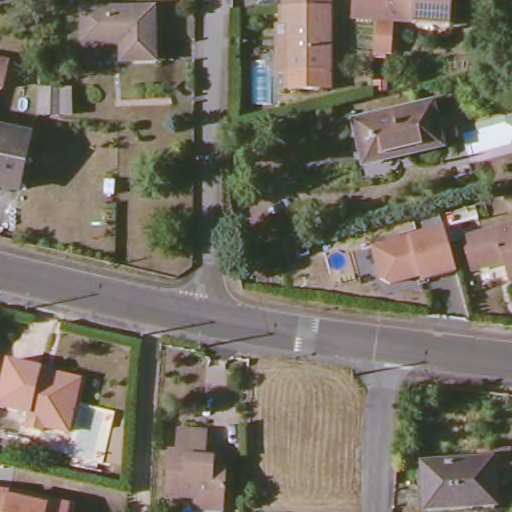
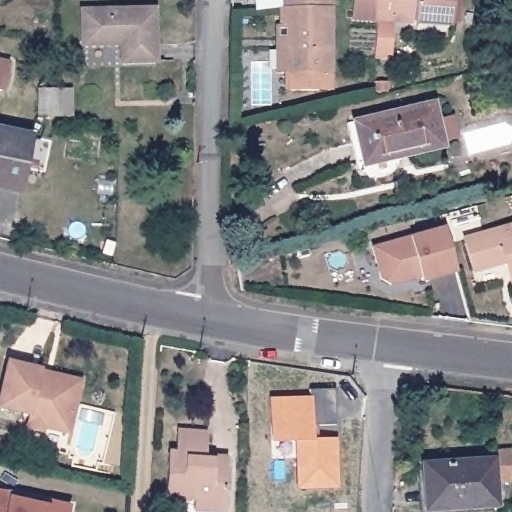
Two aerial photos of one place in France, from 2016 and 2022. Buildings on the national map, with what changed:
unchanged [(285,30),(285,27),(278,27),(276,0),(323,0),(330,91),(289,95),(288,72),(275,74),(273,30),(285,30)]
unchanged [(352,20),(347,20),(347,0),(445,0),(445,21),(390,20),(390,53),(373,52),(373,20),(352,20)]
unchanged [(116,57),(115,40),(77,40),(76,5),(148,4),(150,57),(116,57)]
unchanged [(2,93),(0,92),(0,71),(7,73),(2,93)]
unchanged [(61,121),(39,120),(40,92),(60,92),(64,93),(63,120),(61,121)]
unchanged [(365,164),(352,123),(432,102),(443,142),(365,164)]
unchanged [(0,132),(30,139),(17,194),(0,189),(0,132)]
unchanged [(504,280),(498,260),(467,268),(457,235),(512,221),(512,278),(504,280)]
unchanged [(452,255),(457,272),(422,283),(421,278),(392,287),(382,282),(372,250),(444,230),(452,255)]
unchanged [(35,418),(35,415),(2,406),(12,360),(46,368),(45,376),(54,378),(55,372),(83,378),(72,430),(47,425),(45,431),(32,428),(35,418)]
new [(312,400),(312,391),(338,390),(338,426),(312,426),(313,440),(337,440),(337,488),(298,488),(298,441),(273,441),(272,400),(312,400)]
unchanged [(192,503),(162,500),(166,455),(175,456),(177,435),(205,436),(204,463),(209,463),(209,461),(225,462),(221,512),(190,512),(192,503)]
unchanged [(479,461),(479,455),(487,455),(509,453),(512,480),(493,481),(495,506),(488,506),(426,510),(423,464),(479,461)]
unchanged [(7,493),(47,501),(47,497),(68,502),(66,512),(0,512),(0,488),(7,488),(7,493)]

